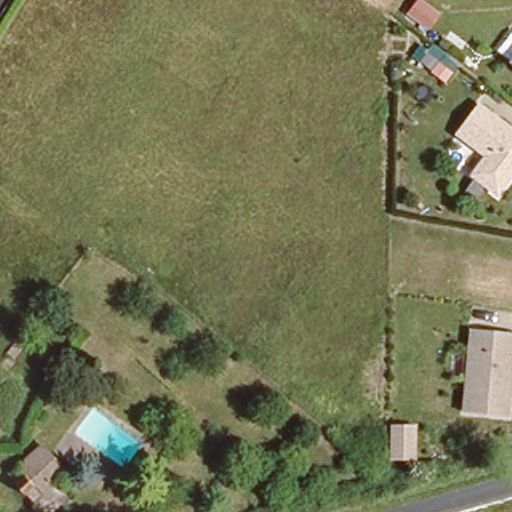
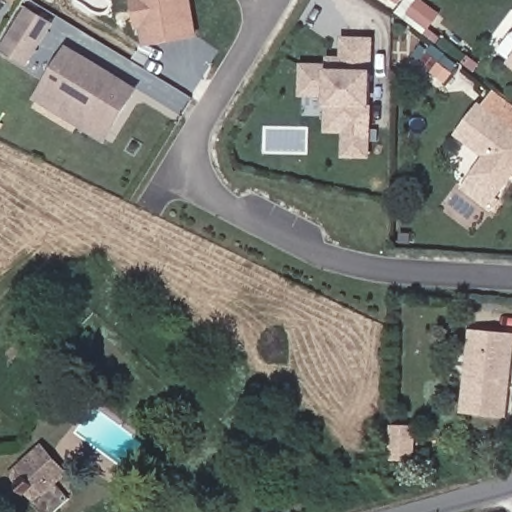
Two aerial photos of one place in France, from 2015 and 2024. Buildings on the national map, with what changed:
new [(199,36),(144,46),(141,29),(137,30),(131,0),(192,0),(199,36)]
new [(399,4),(392,0),(402,0),(399,4)]
unchanged [(438,15),(428,28),(409,12),(418,0),(419,0),(438,15)]
new [(28,66),(1,49),(27,6),(55,22),(28,66)]
new [(301,61),(326,62),(326,55),(341,56),(341,36),(374,37),(374,70),(373,106),(371,157),(343,157),(344,133),(326,132),(327,106),(326,96),(300,96),(301,61)]
new [(140,86),(107,144),(33,99),(67,43),(140,86)]
new [(428,60),(435,51),(448,60),(440,70),(428,60)]
unchanged [(512,176),(499,196),(470,175),(482,155),(455,135),(478,101),(512,127),(512,176)]
unchanged [(512,351),(507,413),(463,410),(469,329),(512,333),(512,351)]
new [(414,458),(393,458),(394,427),(414,427),(414,458)]
unchanged [(42,443),(79,483),(69,493),(55,479),(43,490),(17,466),(42,443)]
unchanged [(55,479),(69,493),(49,512),(46,512),(8,475),(17,466),(43,490),(55,479)]

